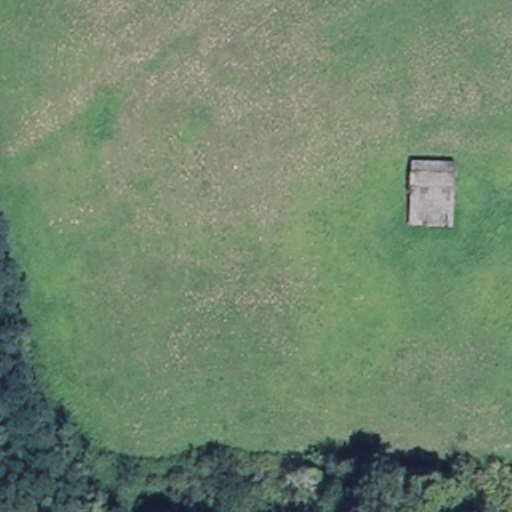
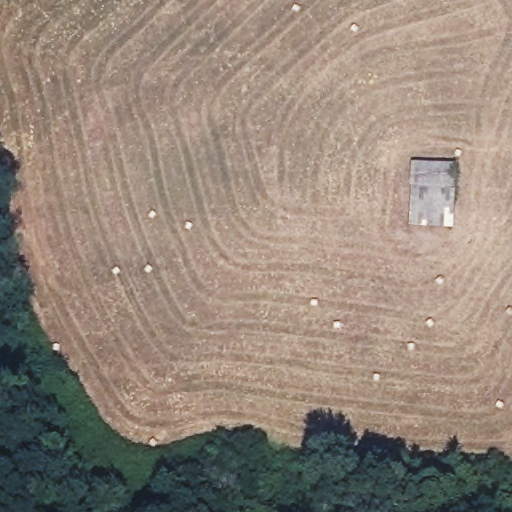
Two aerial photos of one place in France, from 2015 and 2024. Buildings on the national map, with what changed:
unchanged [(460,231),(416,230),(418,157),(464,159),(460,231)]

